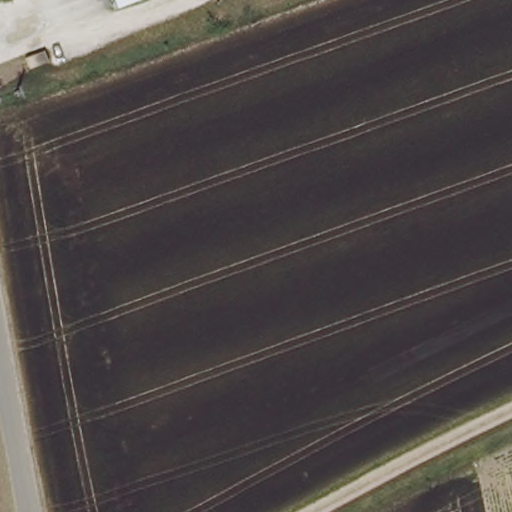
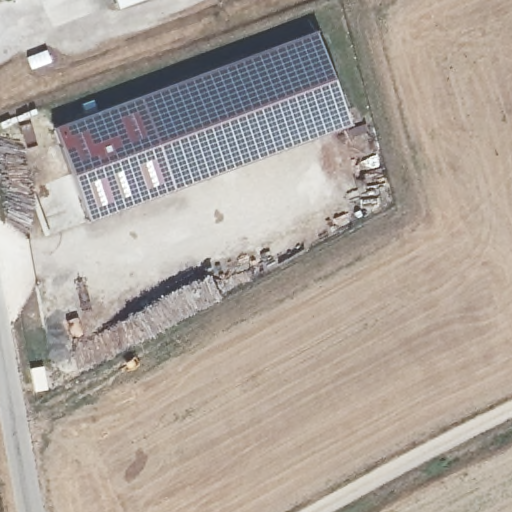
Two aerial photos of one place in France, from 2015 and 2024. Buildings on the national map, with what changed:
unchanged [(112,0),(126,0),(113,5),(112,0)]
new [(312,31),(349,125),(88,220),(52,126),(312,31)]

